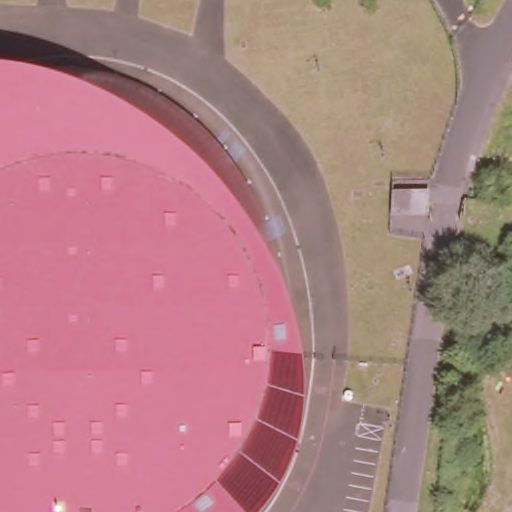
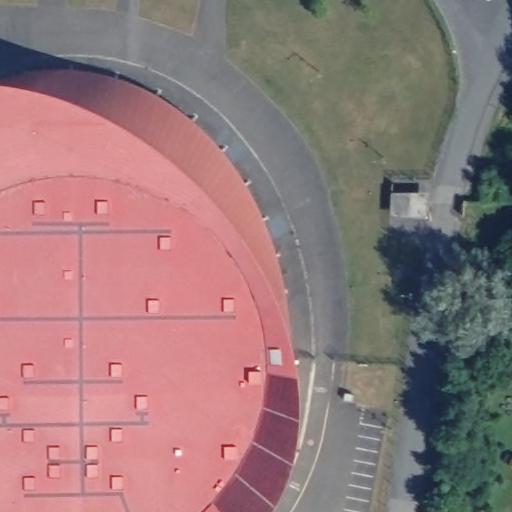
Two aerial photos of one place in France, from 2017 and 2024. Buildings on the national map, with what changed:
unchanged [(33,81),(100,107),(158,141),(213,191),(256,250),(286,309),(299,355),(303,399),(297,450),(282,492),(270,512),(0,512),(0,73),(33,81)]
unchanged [(429,210),(392,211),(392,195),(428,194),(429,210)]

